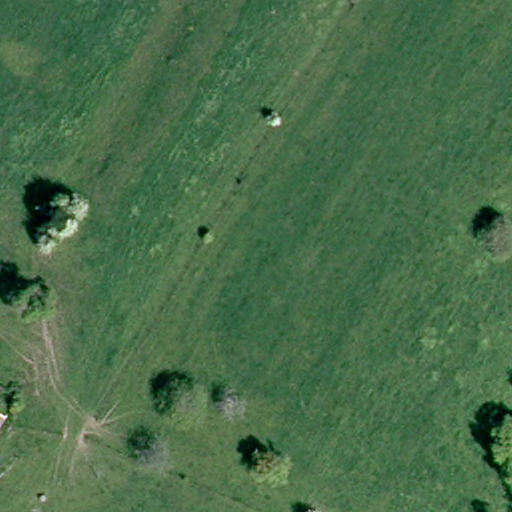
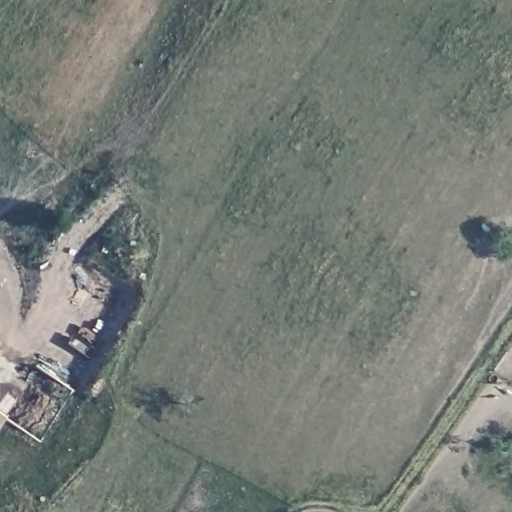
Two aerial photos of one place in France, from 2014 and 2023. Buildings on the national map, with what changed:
unchanged [(0,433),(0,411),(10,417),(0,433)]

